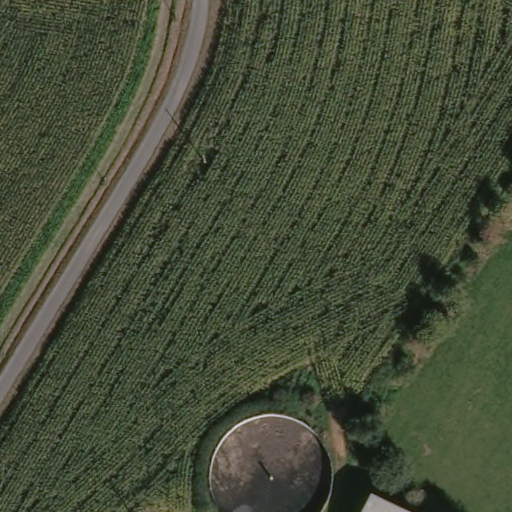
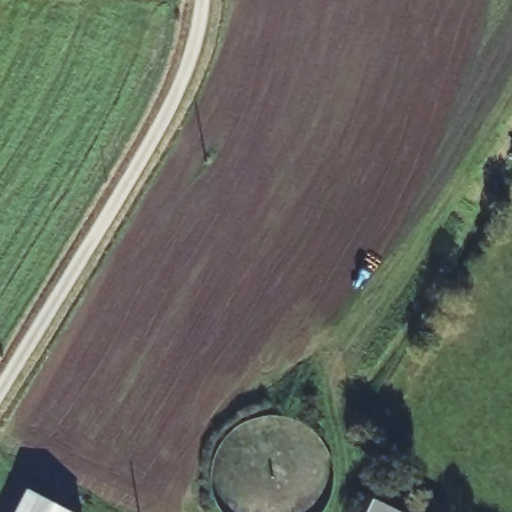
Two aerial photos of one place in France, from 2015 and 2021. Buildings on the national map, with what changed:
new [(73,512),(15,512),(27,489),(73,512)]
unchanged [(402,512),(367,512),(373,498),(402,512)]

